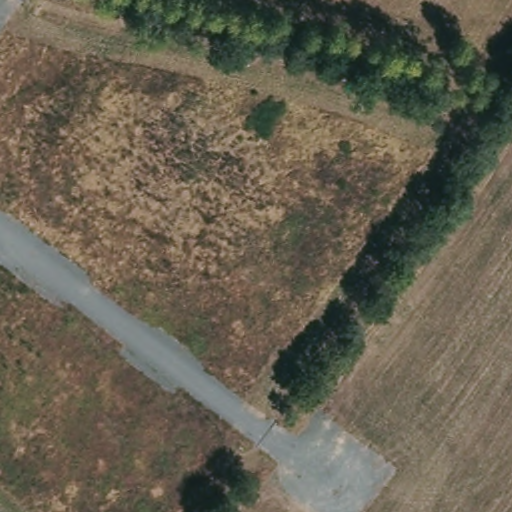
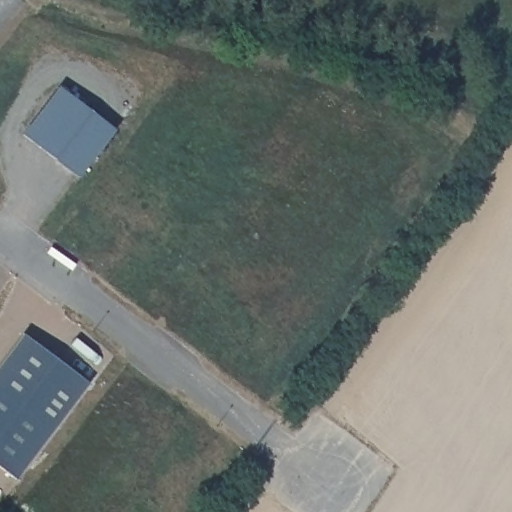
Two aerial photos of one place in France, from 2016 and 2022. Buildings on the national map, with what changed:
new [(56,94),(89,120),(52,168),(20,143),(56,94)]
new [(89,120),(112,138),(76,186),(52,168),(89,120)]
new [(21,344),(87,395),(14,492),(0,482),(0,372),(21,344)]

